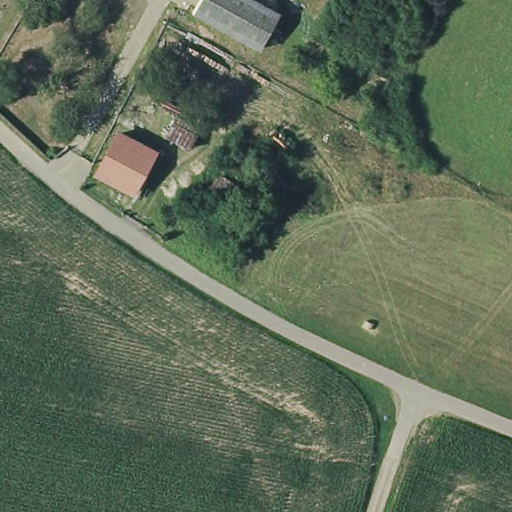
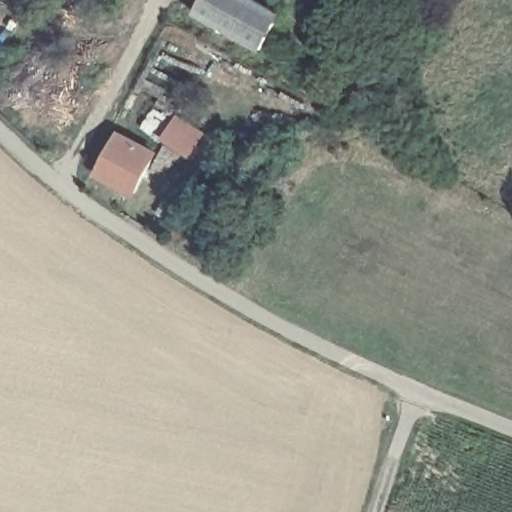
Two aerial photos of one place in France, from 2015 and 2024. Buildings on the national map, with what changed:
unchanged [(256,0),(280,14),(262,47),(195,11),(202,0),(256,0)]
unchanged [(203,131),(192,151),(165,135),(176,116),(203,131)]
unchanged [(151,151),(132,187),(101,170),(120,134),(151,151)]
unchanged [(251,170),(238,196),(213,184),(226,157),(251,170)]

